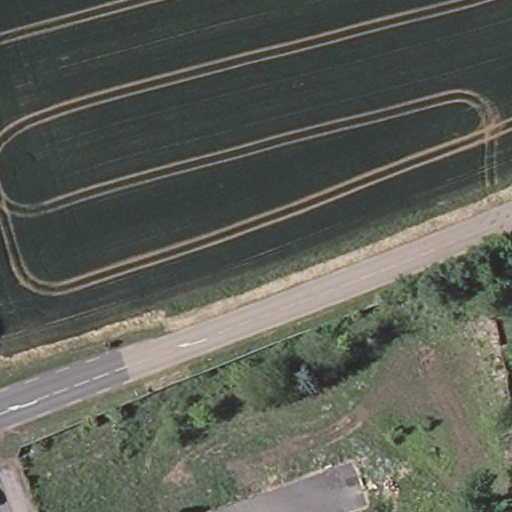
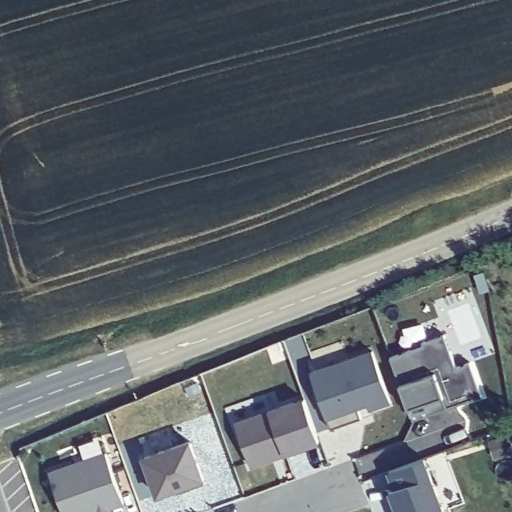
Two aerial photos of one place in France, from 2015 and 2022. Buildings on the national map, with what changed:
new [(412,414),(391,355),(424,344),(423,340),(446,333),(457,366),(471,361),(483,396),(447,408),(413,419),(412,414)]
new [(313,372),(374,351),(392,403),(370,409),(369,404),(359,407),(363,419),(332,429),(313,372)]
new [(251,464),(237,422),(306,399),(320,441),(286,453),(266,459),(251,464)]
new [(188,445),(203,487),(155,504),(141,462),(188,445)]
new [(51,471),(107,452),(126,504),(103,512),(65,512),(51,471)]
new [(395,487),(401,501),(389,472),(424,459),(443,509),(436,512),(399,512),(396,503),(390,488),(395,487)]

